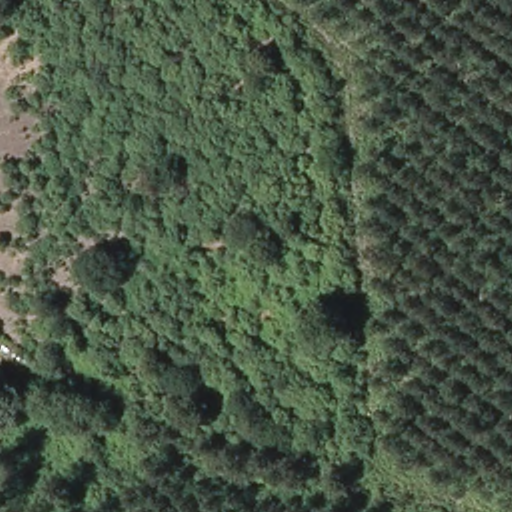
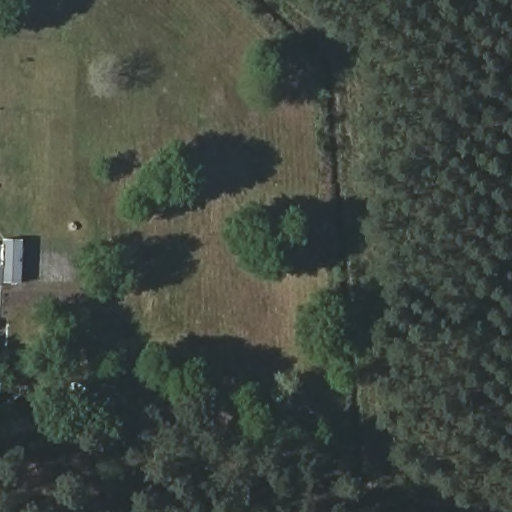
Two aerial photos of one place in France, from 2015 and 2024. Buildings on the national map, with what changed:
new [(21,282),(0,282),(0,244),(5,245),(5,239),(22,240),(21,282)]

